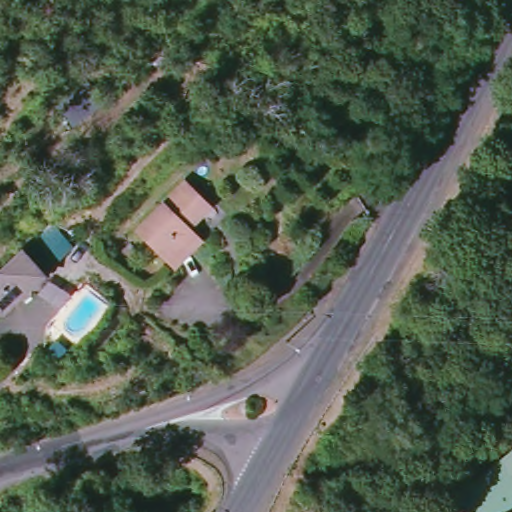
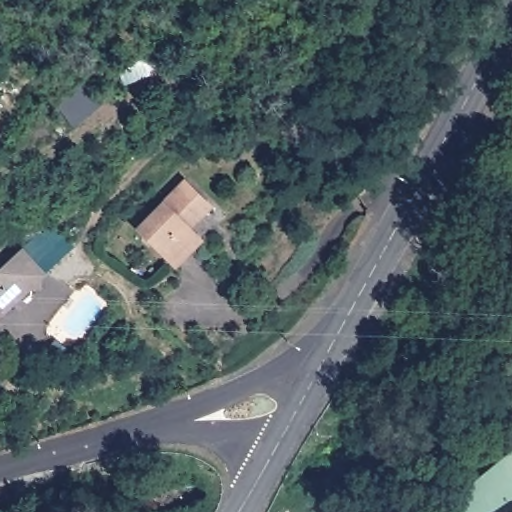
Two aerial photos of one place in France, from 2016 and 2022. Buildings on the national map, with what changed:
unchanged [(167,200),(187,177),(216,207),(195,229),(206,240),(177,270),(137,230),(167,200)]
unchanged [(47,288),(35,289),(21,301),(6,315),(0,315),(0,272),(26,247),(49,274),(47,288)]
unchanged [(512,453),(512,512),(466,512),(460,496),(512,453)]

